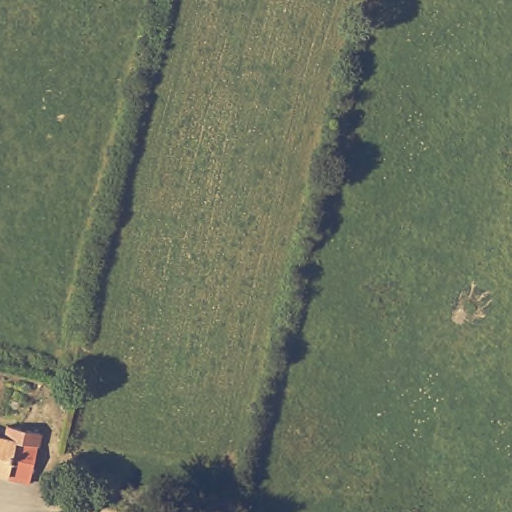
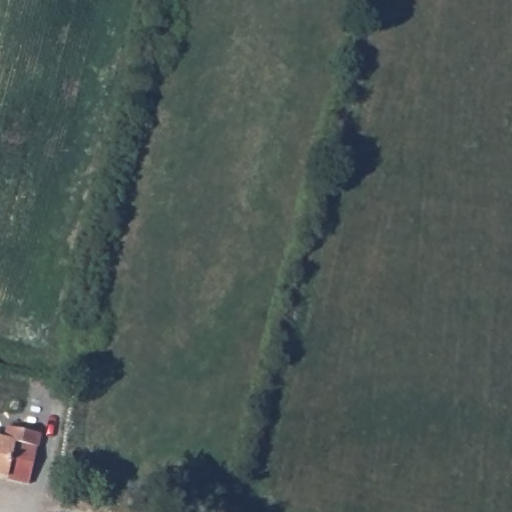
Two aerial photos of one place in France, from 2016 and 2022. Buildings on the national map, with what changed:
unchanged [(7,427),(40,435),(30,481),(8,476),(0,475),(0,438),(5,439),(7,427)]

